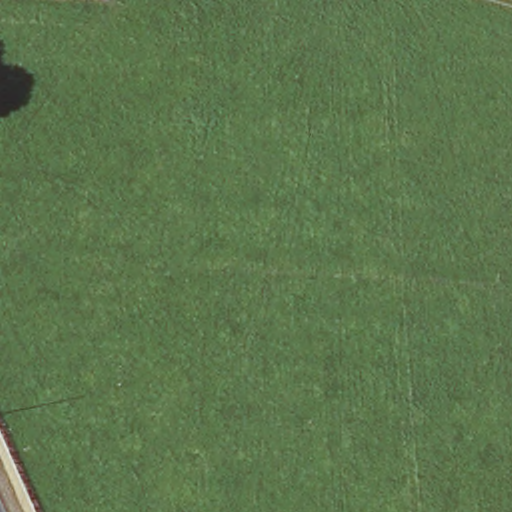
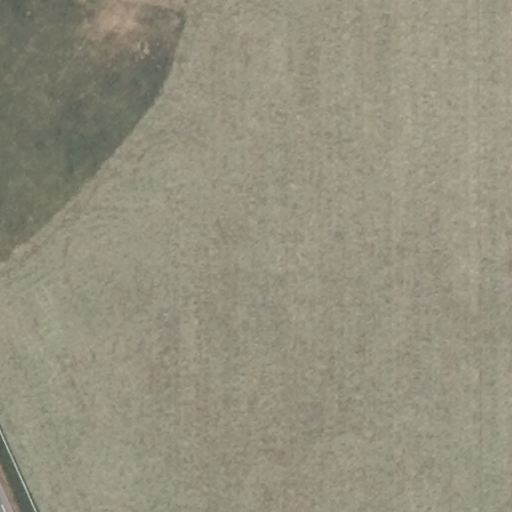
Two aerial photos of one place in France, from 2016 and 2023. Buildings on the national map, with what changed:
[]

